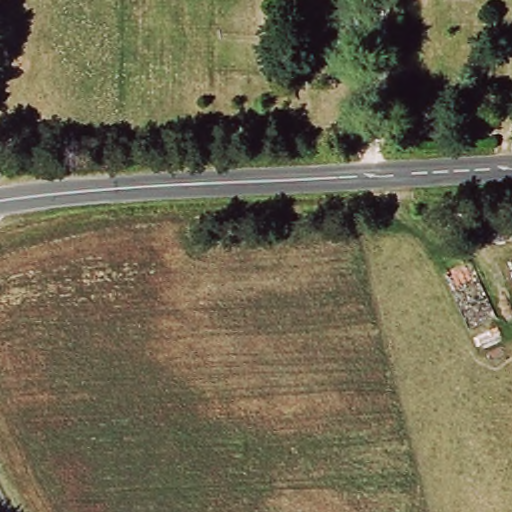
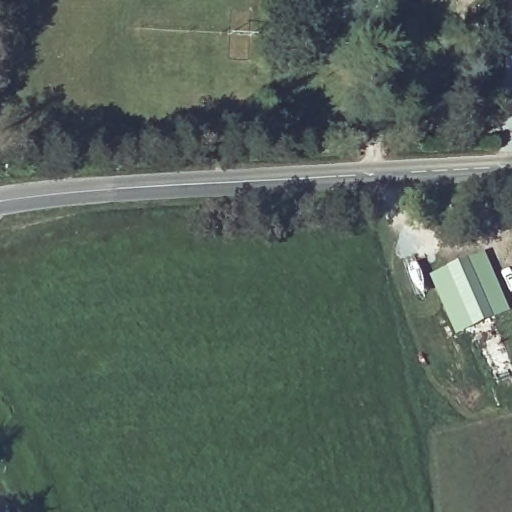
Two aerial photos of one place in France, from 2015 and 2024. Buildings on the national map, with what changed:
new [(483,252),(510,311),(455,336),(429,276),(483,252)]

